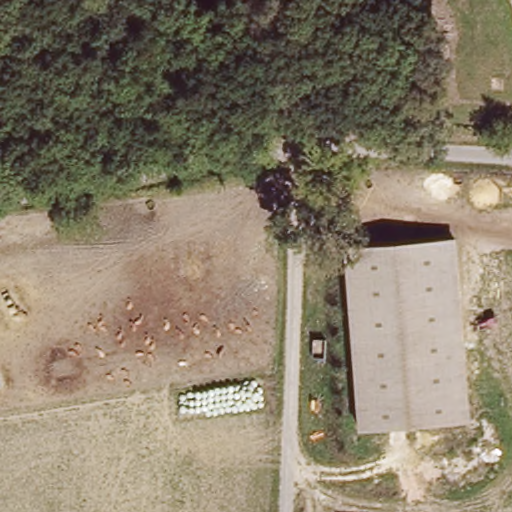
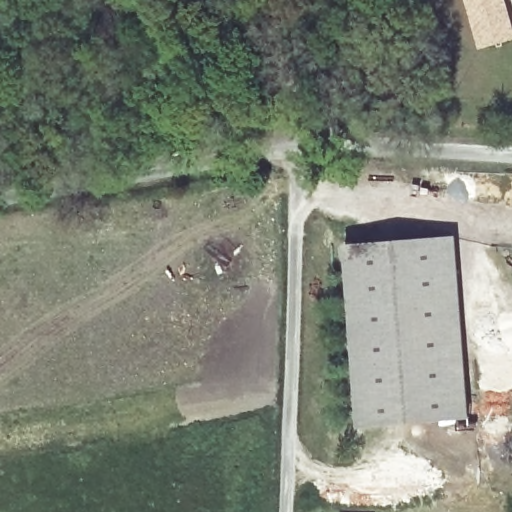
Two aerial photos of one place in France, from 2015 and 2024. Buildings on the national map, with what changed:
new [(480,49),(466,0),(506,0),(512,20),(512,40),(480,49)]
unchanged [(455,236),(469,420),(358,427),(344,249),(455,236)]

